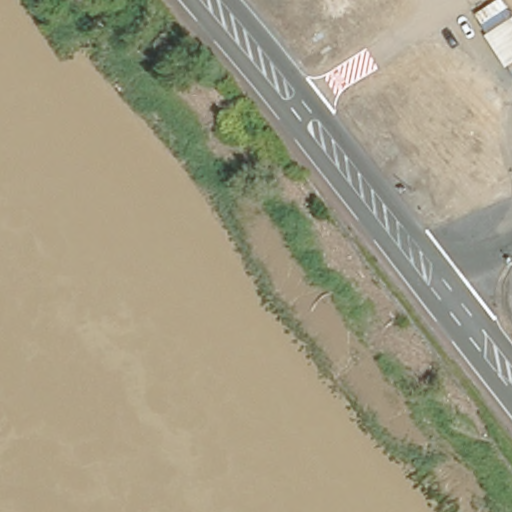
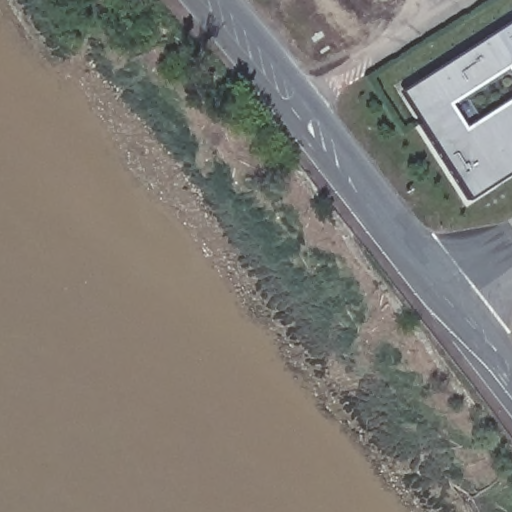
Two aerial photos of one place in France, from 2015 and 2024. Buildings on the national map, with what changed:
new [(467,198),(399,91),(512,19),(512,70),(509,65),(447,104),(462,127),(512,97),(512,169),(467,198)]

